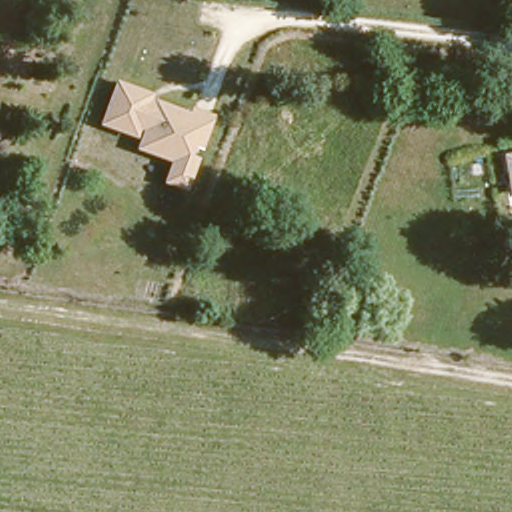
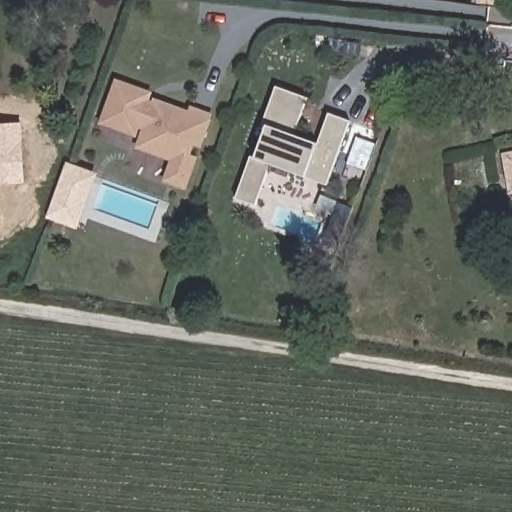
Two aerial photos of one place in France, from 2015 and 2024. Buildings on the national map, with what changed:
unchanged [(186,191),(162,182),(169,161),(135,150),(141,130),(139,129),(136,138),(99,125),(115,80),(151,93),(149,100),(153,102),(154,99),(188,111),(190,106),(213,115),(211,119),(201,150),(194,148),(191,155),(198,158),(186,191)]
new [(255,158),(265,126),(278,88),(307,98),(294,136),(317,145),(329,114),(349,121),(326,184),(304,177),(271,166),(255,205),(236,198),(255,158)]
new [(22,124),(25,183),(0,185),(0,125),(22,124)]
unchanged [(495,148),(512,145),(512,185),(501,187),(495,148)]
new [(97,174),(76,229),(46,219),(67,161),(97,174)]

